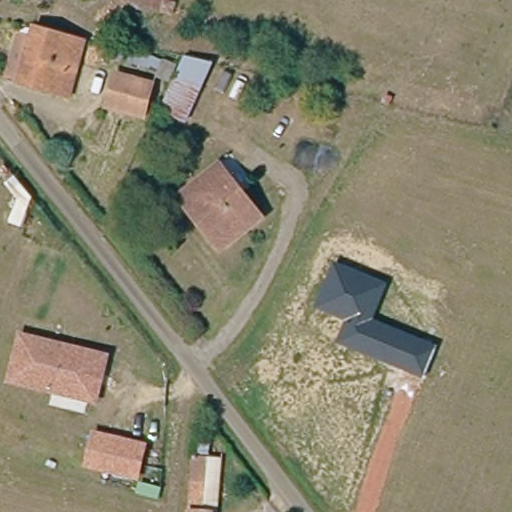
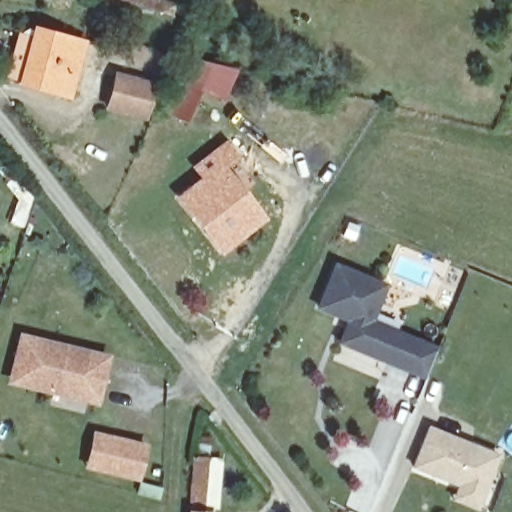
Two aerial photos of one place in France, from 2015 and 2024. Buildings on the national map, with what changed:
unchanged [(79,76),(86,77),(84,93),(74,92),(73,101),(20,92),(21,83),(8,82),(15,42),(21,43),(23,35),(31,36),(85,46),(79,76)]
unchanged [(155,73),(152,85),(117,78),(122,54),(179,64),(173,77),(155,73)]
unchanged [(160,112),(184,58),(214,63),(187,124),(160,112)]
unchanged [(145,113),(111,108),(117,78),(152,85),(145,113)]
unchanged [(182,195),(222,166),(258,218),(219,247),(209,233),(194,212),(182,195)]
unchanged [(374,320),(436,347),(423,378),(335,342),(345,321),(316,308),(334,262),(388,281),(374,320)]
unchanged [(105,352),(94,401),(45,390),(46,386),(9,378),(19,333),(105,352)]
new [(501,454),(478,510),(450,500),(457,486),(410,468),(428,425),(501,454)]
unchanged [(111,435),(147,442),(139,480),(104,473),(111,435)]
unchanged [(217,464),(215,512),(186,512),(187,502),(190,462),(217,464)]

